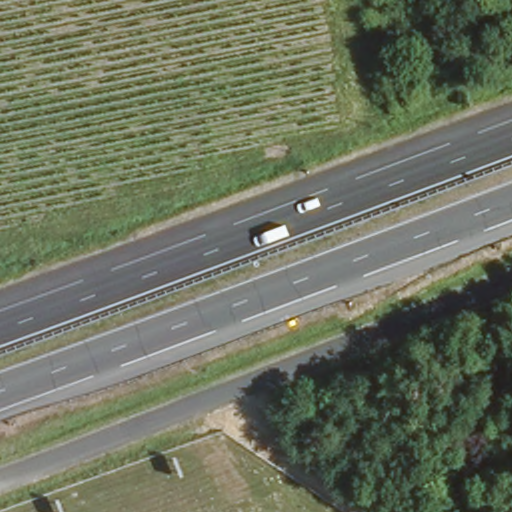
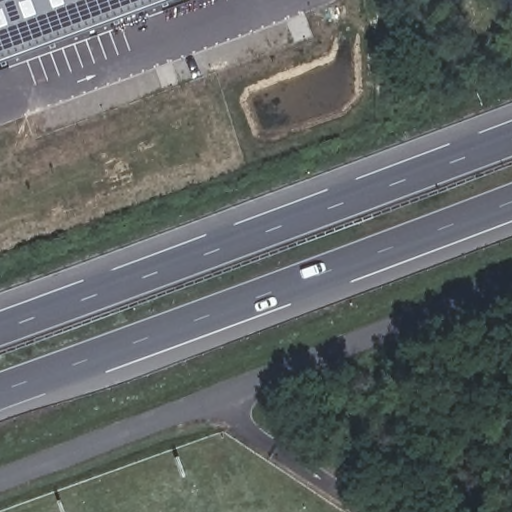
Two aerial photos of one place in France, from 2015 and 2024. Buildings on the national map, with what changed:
new [(0,0),(164,0),(0,61),(0,0)]

